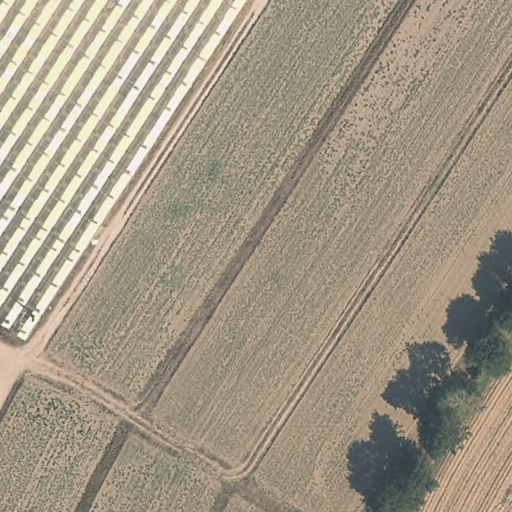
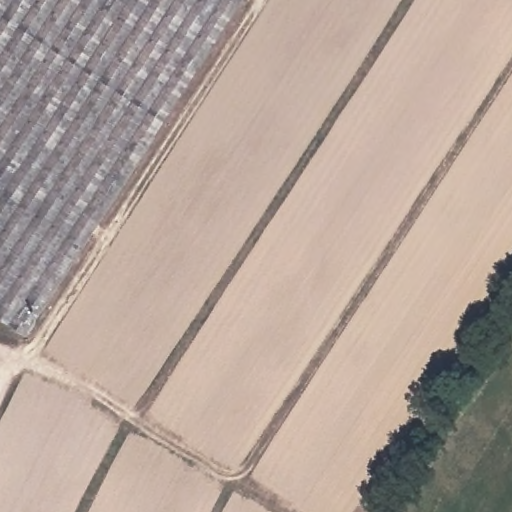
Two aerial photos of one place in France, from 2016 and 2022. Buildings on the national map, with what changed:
unchanged [(26,332),(0,315),(0,0),(241,0),(26,332)]

